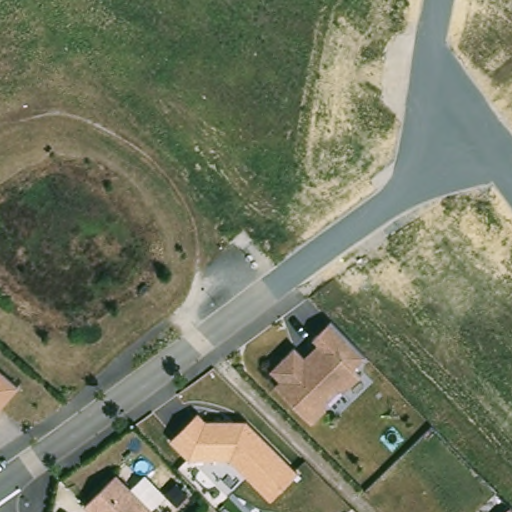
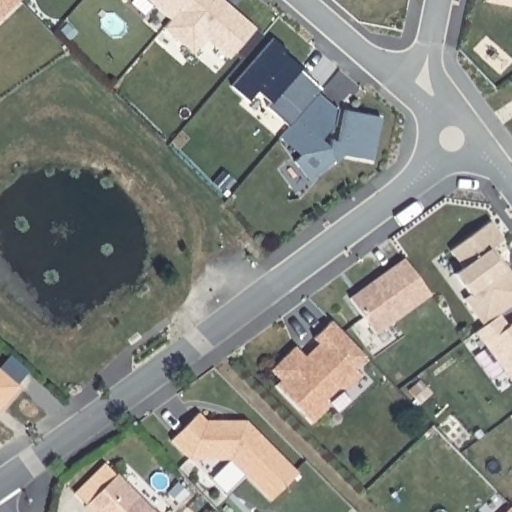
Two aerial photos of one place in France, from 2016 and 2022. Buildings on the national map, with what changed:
new [(0,0),(19,0),(0,19),(0,0)]
new [(148,0),(189,0),(171,20),(148,0)]
new [(233,11),(253,28),(228,56),(205,37),(192,52),(164,28),(171,20),(189,0),(214,0),(231,14),(233,11)]
new [(484,2),(485,0),(512,0),(512,7),(484,2)]
new [(240,103),(245,98),(231,86),(272,38),(286,49),(282,53),(301,67),(299,70),(323,90),(319,94),(338,111),(335,126),(322,140),(330,147),(332,141),(339,142),(345,110),(382,118),(373,162),(344,156),(310,181),(296,162),(279,139),(240,103)]
new [(504,240),(493,248),(507,268),(512,274),(512,306),(500,315),(485,326),(465,299),(471,295),(455,274),(464,268),(451,251),(490,222),(504,240)]
new [(405,259),(431,295),(377,334),(351,298),(405,259)]
new [(485,326),(500,315),(509,327),(512,325),(512,381),(476,332),(485,326)]
unchanged [(307,356),(320,342),(314,337),(334,320),(368,356),(357,366),(357,367),(363,374),(350,388),(341,386),(328,400),(328,401),(329,410),(313,424),(276,385),(283,380),(272,368),(297,347),(307,356)]
unchanged [(0,409),(0,371),(19,387),(0,409)]
unchanged [(203,420),(245,420),(297,473),(268,500),(229,460),(187,460),(167,441),(198,413),(203,420)]
unchanged [(116,474),(153,512),(91,512),(85,505),(116,474)]
unchanged [(512,506),(512,512),(506,512),(512,506)]

